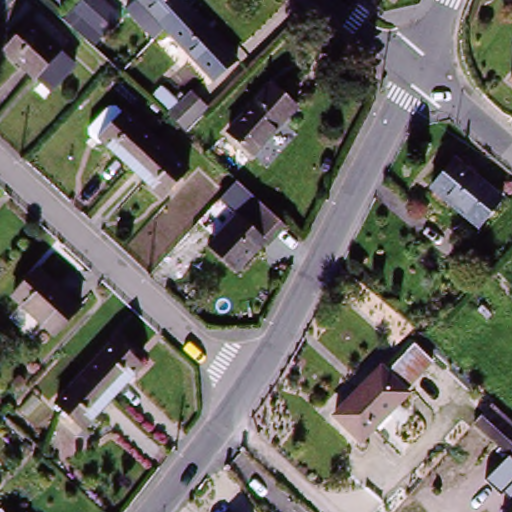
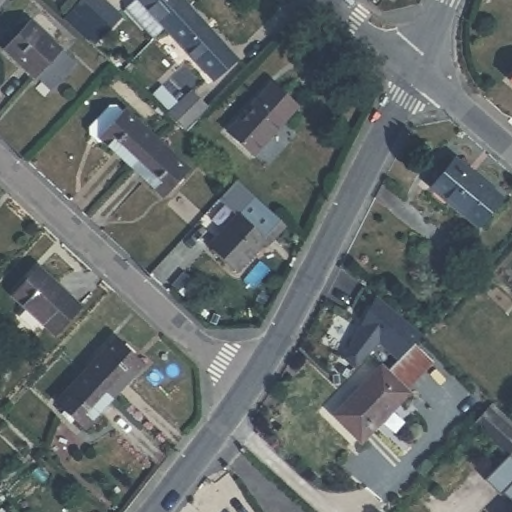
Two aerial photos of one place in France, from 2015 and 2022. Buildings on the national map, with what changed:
unchanged [(88,0),(108,0),(128,20),(111,38),(100,49),(70,19),(80,7),(88,0)]
unchanged [(170,31),(157,42),(132,14),(144,3),(142,1),(144,0),(185,0),(194,9),(170,32),(170,31)]
unchanged [(194,9),(238,59),(215,81),(170,32),(194,9)]
unchanged [(56,53),(32,78),(2,50),(26,25),(56,53)]
unchanged [(501,87),(512,75),(512,98),(501,87)]
unchanged [(296,108),(261,156),(229,133),(264,85),(296,108)]
unchanged [(169,116),(190,96),(205,110),(185,132),(173,121),(169,116)]
unchanged [(110,148),(105,150),(96,140),(96,133),(117,111),(124,112),(162,148),(136,174),(110,148)]
unchanged [(162,148),(195,178),(168,204),(136,174),(162,148)]
unchanged [(425,189),(450,159),(453,162),(496,198),(472,227),(430,192),(425,189)]
unchanged [(270,241),(237,274),(210,250),(247,211),(238,203),(228,193),(236,184),(246,194),(285,230),(271,243),(270,241)]
unchanged [(47,330),(36,320),(7,292),(32,267),(60,296),(71,306),(47,330)]
new [(421,333),(396,359),(378,342),(354,367),(342,357),(376,292),(421,333)]
unchanged [(82,376),(112,344),(139,370),(109,401),(82,376)]
unchanged [(412,349),(431,367),(403,395),(385,376),(412,349)]
unchanged [(403,395),(406,397),(358,446),(332,420),(379,371),(385,376),(403,395)]
unchanged [(80,431),(55,405),(82,376),(109,401),(80,431)]
unchanged [(512,432),(512,444),(503,453),(470,423),(485,407),(512,432)]
unchanged [(505,491),(502,495),(485,480),(510,456),(512,458),(512,498),(505,491)]

